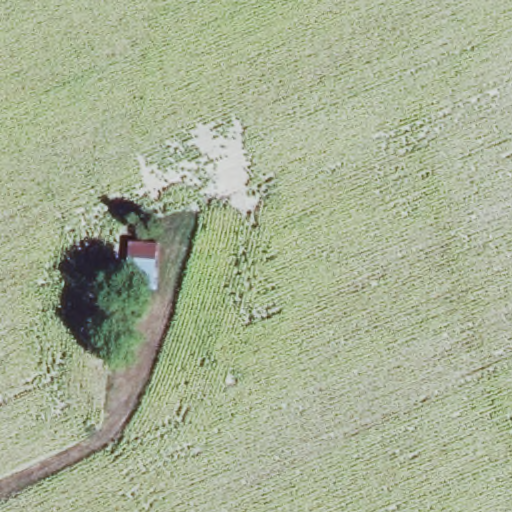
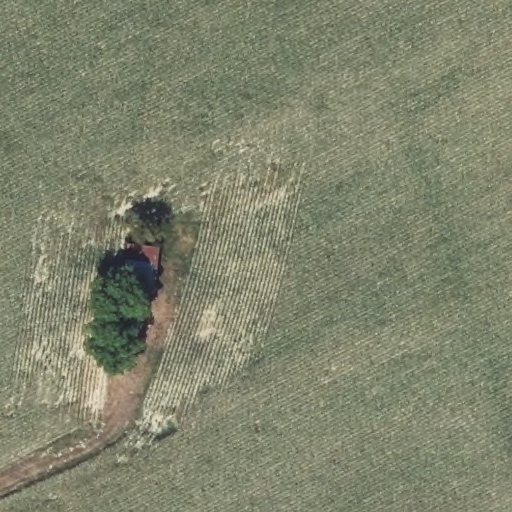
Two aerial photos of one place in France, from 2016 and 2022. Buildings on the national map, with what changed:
unchanged [(125,290),(128,245),(162,248),(160,297),(125,290)]

